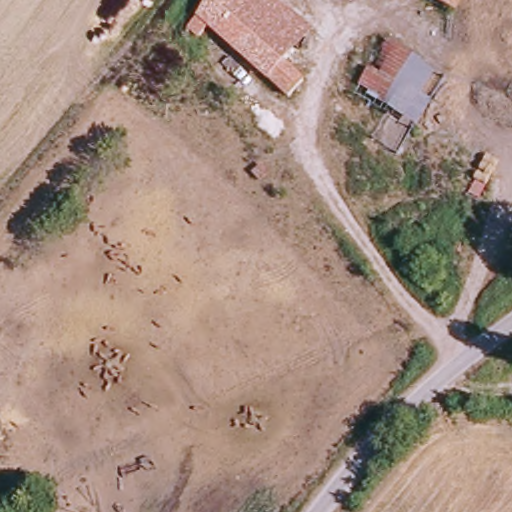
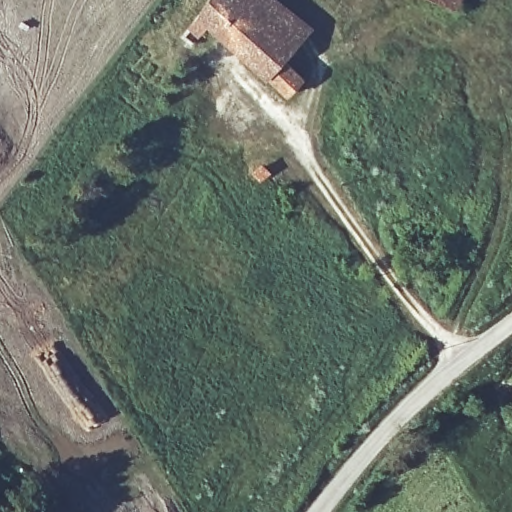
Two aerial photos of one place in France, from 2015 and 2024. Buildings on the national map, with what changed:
unchanged [(294,90),(216,20),(199,43),(187,33),(211,0),(307,0),(326,15),(289,56),(309,74),(294,90)]
unchanged [(458,6),(445,0),(461,0),(458,6)]
demolished [(356,91),(388,36),(453,77),(419,130),(356,91)]

